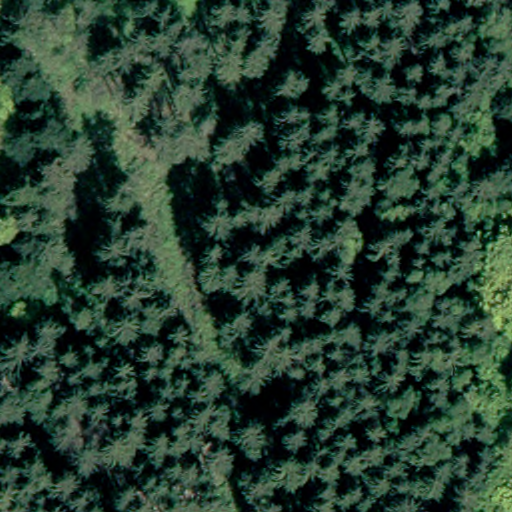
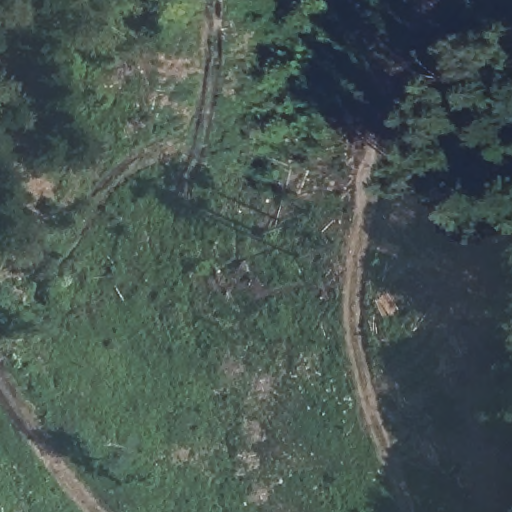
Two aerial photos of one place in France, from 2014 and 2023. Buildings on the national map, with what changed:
[]

